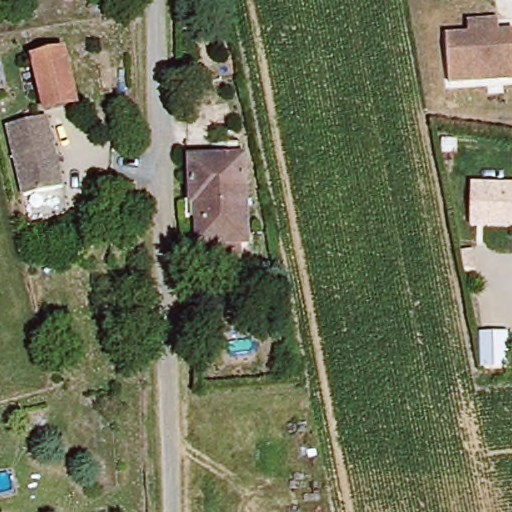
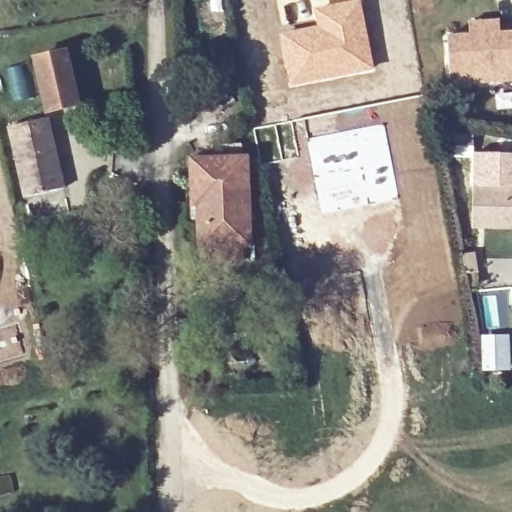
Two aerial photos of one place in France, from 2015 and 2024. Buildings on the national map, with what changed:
new [(314,9),(356,0),(361,0),(374,70),(290,87),(279,32),(317,24),(314,9)]
unchanged [(512,77),(512,85),(444,90),(441,41),(463,40),(463,26),(493,25),(493,38),(509,38),(512,77)]
unchanged [(51,107),(42,61),(61,56),(69,56),(79,101),(73,102),(51,107)]
unchanged [(0,132),(0,130),(40,122),(56,188),(15,198),(0,132)]
new [(383,124),(398,198),(322,214),(309,139),(383,124)]
unchanged [(249,246),(199,248),(198,221),(204,219),(203,204),(193,202),(193,161),(248,161),(249,246)]
unchanged [(474,229),(474,219),(474,186),(512,187),(512,230),(474,229)]
new [(509,335),(510,371),(474,372),(472,312),(477,312),(477,331),(481,330),(481,336),(509,335)]

